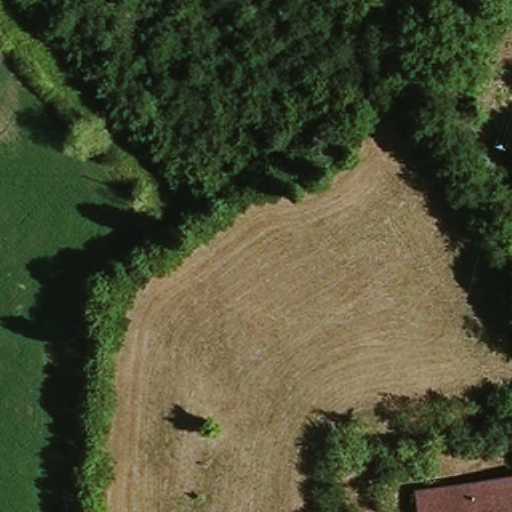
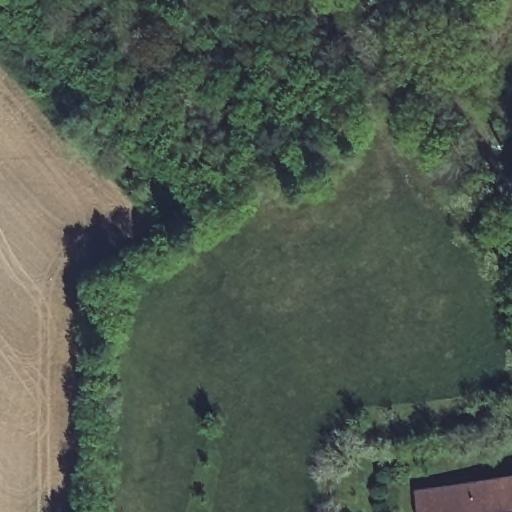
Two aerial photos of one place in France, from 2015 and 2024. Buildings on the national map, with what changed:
unchanged [(413,512),(409,490),(512,472),(512,512),(413,512)]

